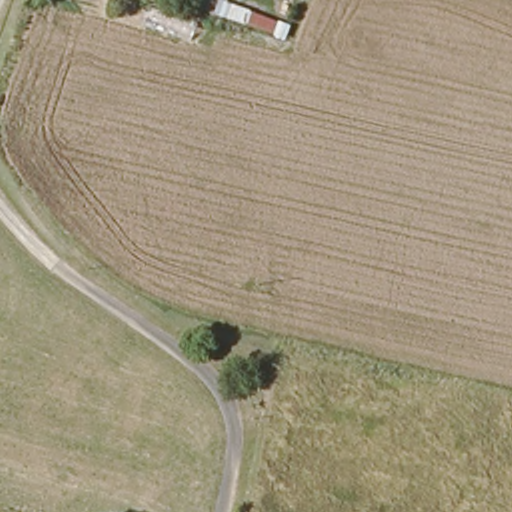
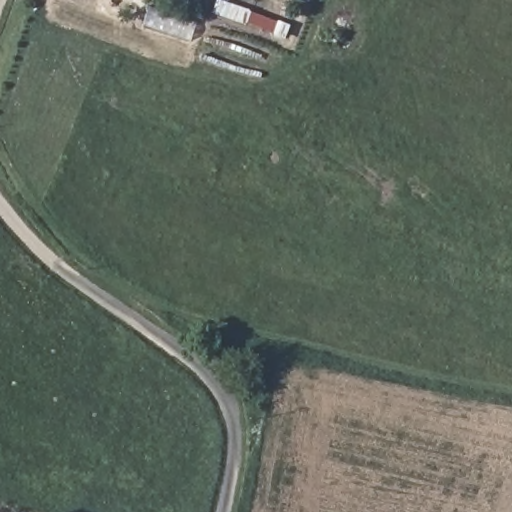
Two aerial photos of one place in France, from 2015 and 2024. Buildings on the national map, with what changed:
[]

